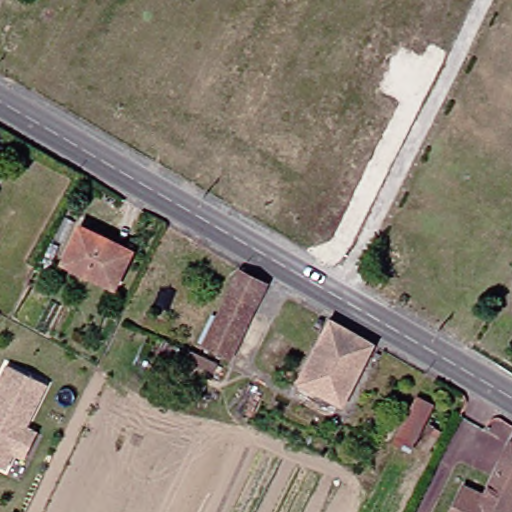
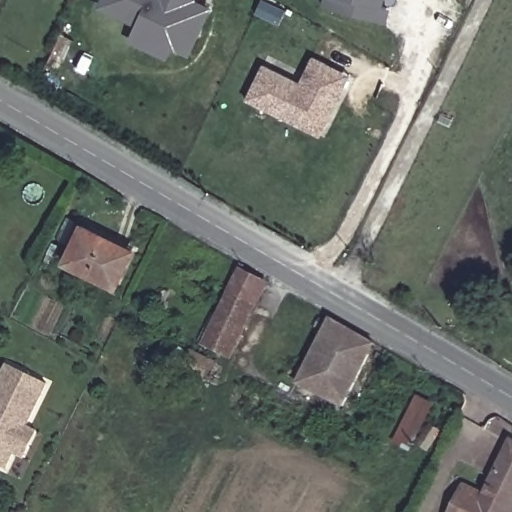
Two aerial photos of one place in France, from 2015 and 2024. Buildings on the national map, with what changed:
new [(171,49),(168,59),(129,41),(135,25),(98,8),(102,0),(198,0),(212,8),(190,57),(171,49)]
new [(388,7),(384,22),(324,6),(326,0),(382,0),(380,5),(388,7)]
new [(389,8),(380,5),(382,0),(395,0),(394,4),(389,8)]
unchanged [(23,35),(18,46),(5,41),(10,29),(23,35)]
new [(321,137),(247,100),(264,65),(300,80),(312,56),(350,74),(321,137)]
unchanged [(121,250),(104,285),(55,262),(71,227),(121,250)]
unchanged [(244,304),(220,356),(195,344),(231,270),(255,284),(244,304)]
unchanged [(369,360),(342,412),(287,384),(320,318),(343,332),(337,344),(369,360)]
unchanged [(166,348),(157,366),(144,359),(153,341),(166,348)]
unchanged [(206,364),(203,369),(198,367),(193,377),(173,367),(180,352),(206,364)]
unchanged [(15,452),(7,468),(0,465),(0,382),(9,364),(49,383),(28,426),(39,432),(26,458),(15,452)]
unchanged [(406,448),(391,442),(412,398),(427,404),(406,448)]
unchanged [(423,447),(414,442),(424,424),(433,429),(423,447)]
unchanged [(512,453),(512,501),(507,499),(500,512),(444,512),(455,491),(474,500),(501,445),(512,453)]

